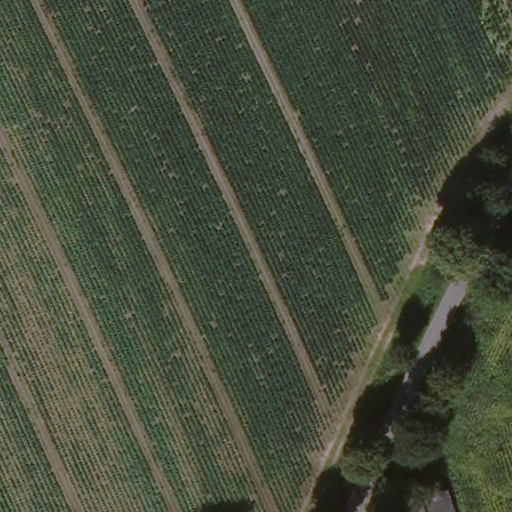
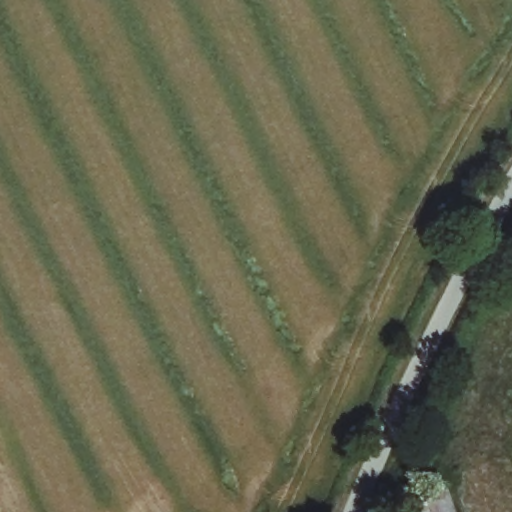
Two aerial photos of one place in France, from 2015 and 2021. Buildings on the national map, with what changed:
unchanged [(389,499),(443,480),(452,512),(393,512),(389,499)]

